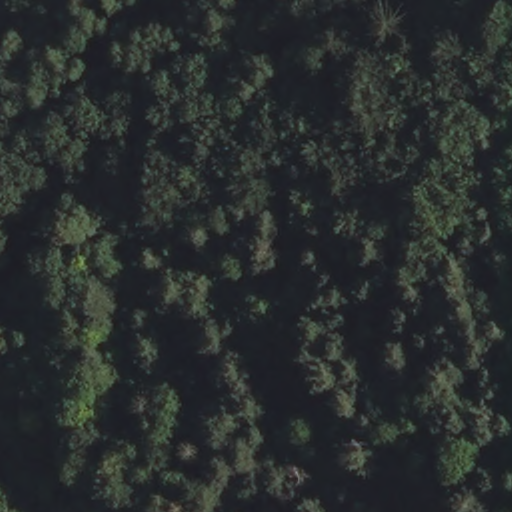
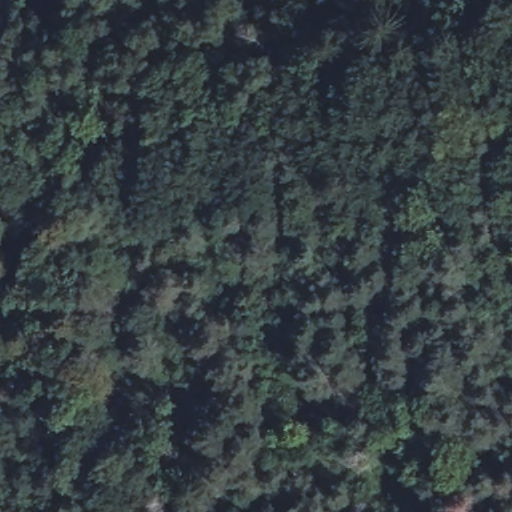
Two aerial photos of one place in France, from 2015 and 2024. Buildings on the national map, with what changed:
[]

